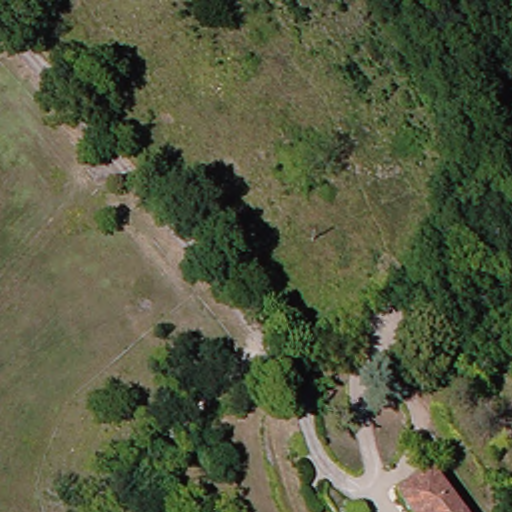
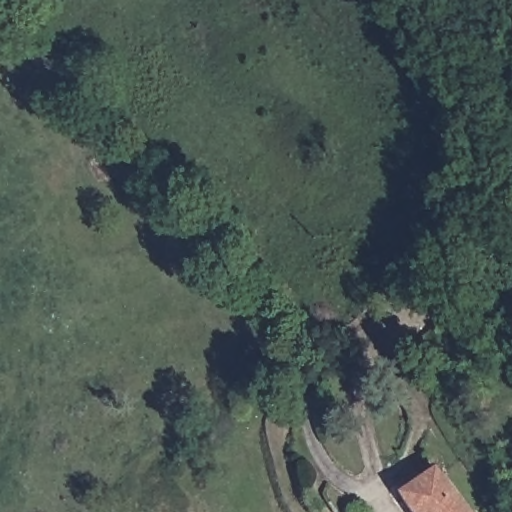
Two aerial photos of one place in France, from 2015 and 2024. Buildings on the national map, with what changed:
unchanged [(458,512),(408,512),(397,495),(432,472),(458,512)]

